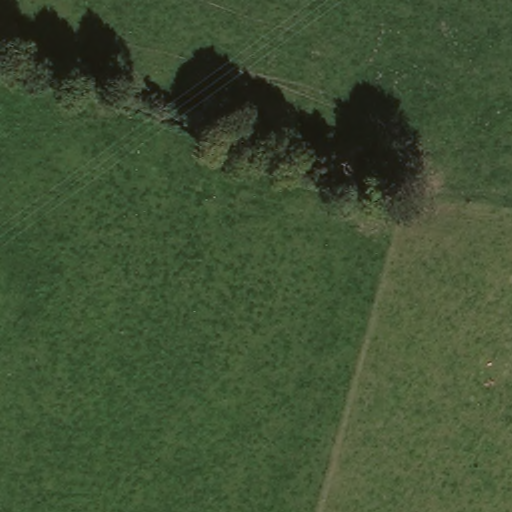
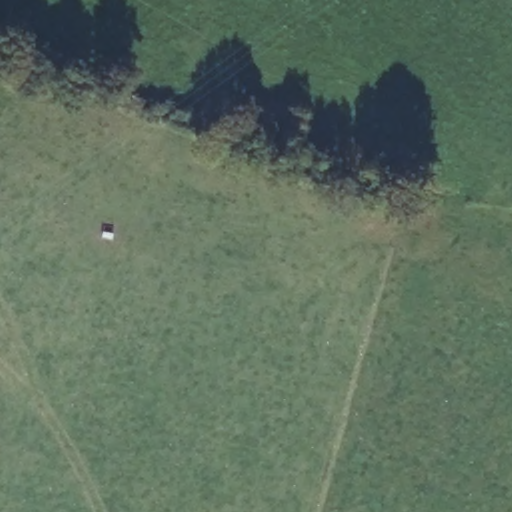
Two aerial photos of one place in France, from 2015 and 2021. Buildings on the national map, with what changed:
[]

